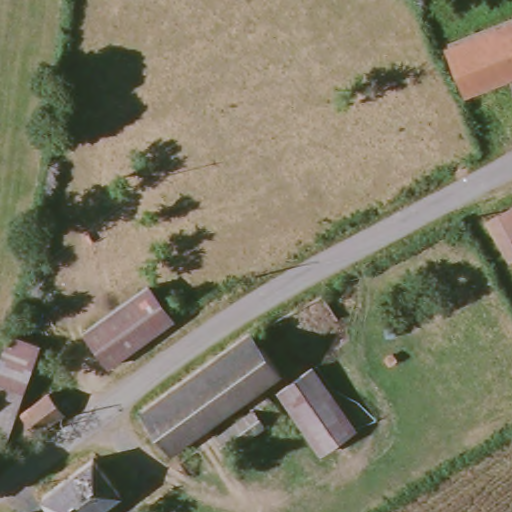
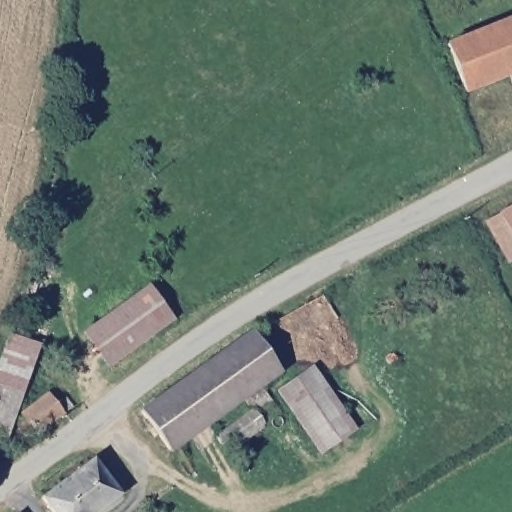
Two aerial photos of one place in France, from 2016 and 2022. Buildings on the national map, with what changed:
unchanged [(463,92),(445,45),(512,18),(512,72),(463,92)]
unchanged [(508,262),(486,223),(512,209),(512,260),(508,262)]
unchanged [(165,317),(103,363),(79,329),(140,284),(165,317)]
unchanged [(0,426),(0,360),(12,325),(34,333),(0,426)]
unchanged [(274,374),(162,452),(134,411),(245,332),(274,374)]
unchanged [(353,430),(320,454),(277,393),(310,369),(353,430)]
unchanged [(55,390),(63,386),(69,394),(30,422),(27,419),(24,422),(19,421),(16,418),(15,414),(17,409),(23,404),(20,397),(46,379),(55,390)]
unchanged [(262,428),(225,455),(215,439),(251,412),(262,428)]
unchanged [(121,491),(93,512),(56,512),(43,497),(95,458),(121,491)]

